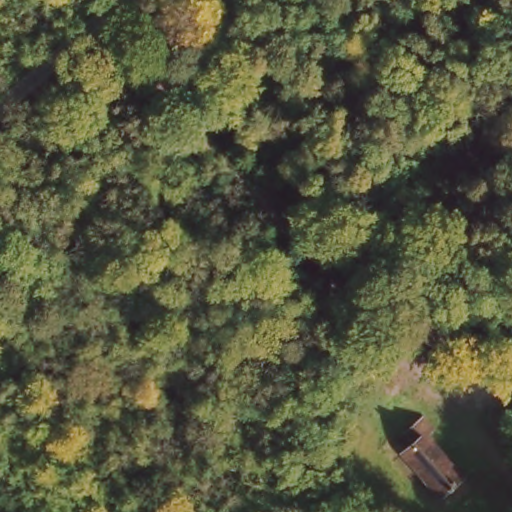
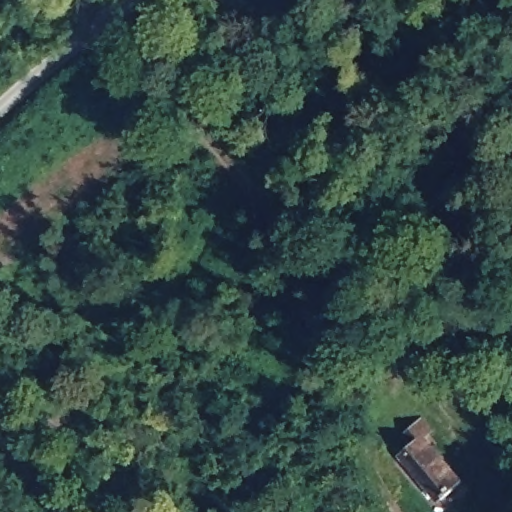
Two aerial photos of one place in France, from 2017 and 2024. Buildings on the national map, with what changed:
unchanged [(462,483),(435,507),(395,460),(423,438),(462,483)]

